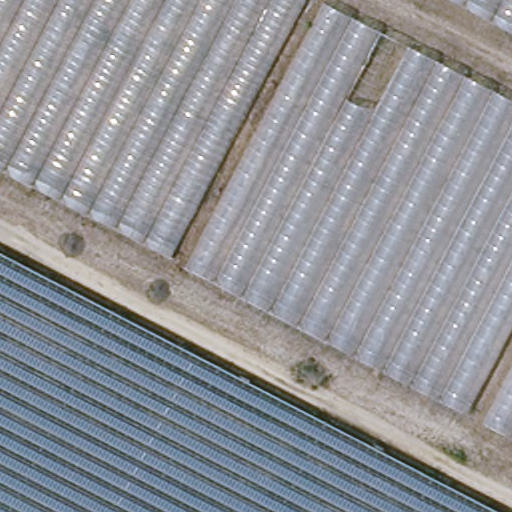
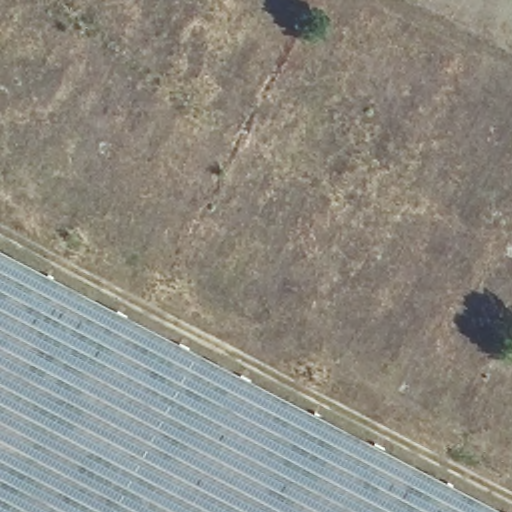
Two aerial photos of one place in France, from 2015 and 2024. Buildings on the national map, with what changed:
demolished [(0,171),(0,0),(322,0),(512,99),(512,437),(0,171)]
demolished [(512,0),(512,30),(454,0),(512,0)]
unchanged [(0,252),(499,512),(0,512),(0,252)]

